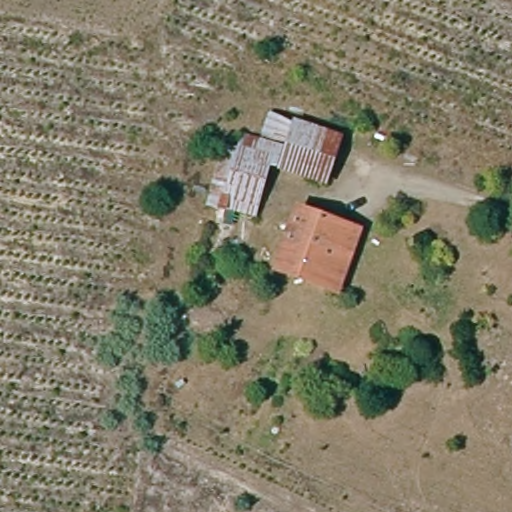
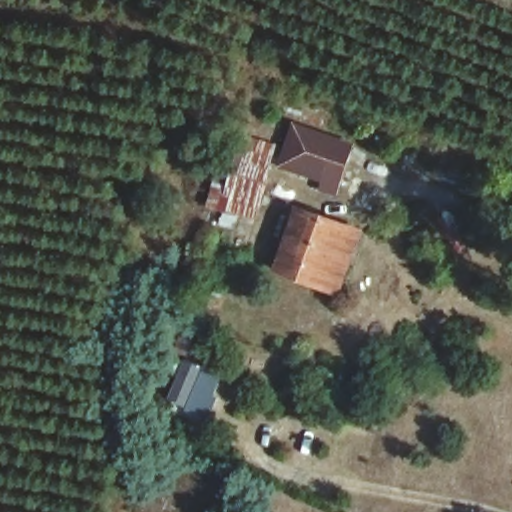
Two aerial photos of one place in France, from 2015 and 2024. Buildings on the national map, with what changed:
unchanged [(267,163),(244,219),(208,207),(227,148),(240,151),(245,134),(258,138),(265,119),(276,124),(267,163)]
unchanged [(337,146),(324,183),(267,163),(276,124),(337,146)]
unchanged [(272,268),(302,214),(356,237),(329,291),(272,268)]
new [(183,357),(222,374),(204,421),(176,409),(177,406),(165,401),(183,357)]

